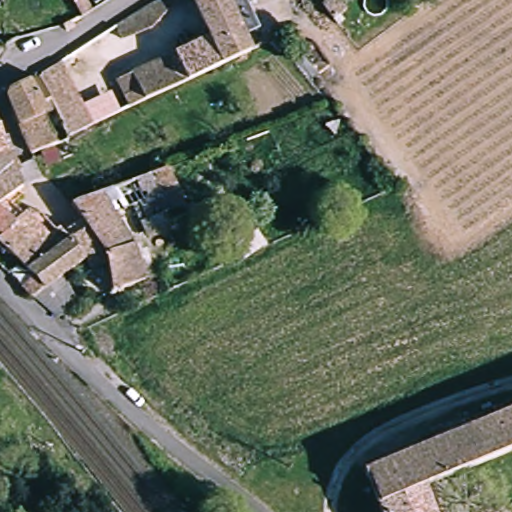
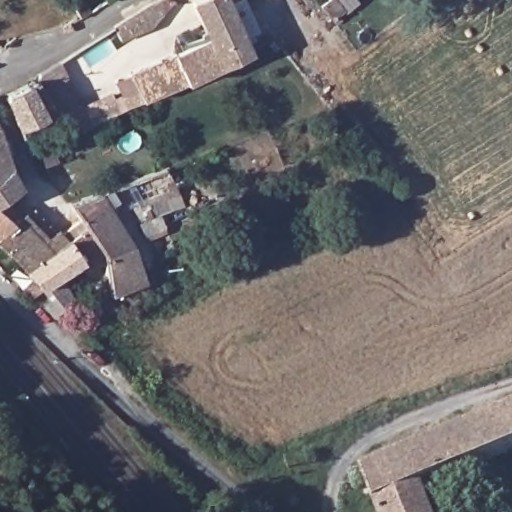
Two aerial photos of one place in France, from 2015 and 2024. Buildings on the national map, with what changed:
unchanged [(90,10),(75,12),(69,0),(86,0),(90,10)]
unchanged [(251,51),(132,107),(118,80),(180,51),(209,37),(205,29),(193,0),(229,0),(251,51)]
unchanged [(309,4),(314,0),(324,0),(333,10),(322,19),(309,4)]
unchanged [(120,38),(112,25),(140,7),(154,2),(162,5),(148,26),(120,38)]
unchanged [(39,73),(61,60),(93,125),(70,136),(56,106),(40,76),(39,73)]
unchanged [(56,106),(47,111),(60,140),(42,146),(33,149),(9,96),(12,91),(40,76),(56,106)]
unchanged [(7,152),(10,162),(0,173),(0,128),(3,137),(7,152)]
unchanged [(21,261),(0,240),(0,173),(10,162),(18,175),(23,182),(25,186),(8,202),(3,206),(18,220),(46,252),(27,266),(21,261)]
unchanged [(88,234),(81,221),(67,199),(70,196),(164,163),(175,187),(172,189),(176,199),(158,206),(137,214),(136,209),(133,202),(108,211),(126,241),(98,249),(93,240),(88,234)]
unchanged [(35,205),(66,239),(46,252),(18,220),(35,205)]
unchanged [(66,239),(72,235),(80,247),(86,258),(65,273),(45,286),(27,266),(46,252),(66,239)]
unchanged [(98,249),(126,241),(138,277),(107,288),(98,249)]
unchanged [(65,273),(87,303),(57,317),(33,295),(45,286),(65,273)]
unchanged [(501,412),(512,408),(512,448),(432,481),(444,512),(379,512),(362,467),(501,412)]

